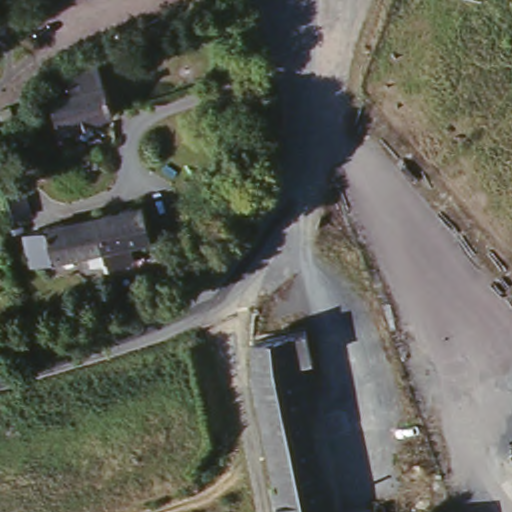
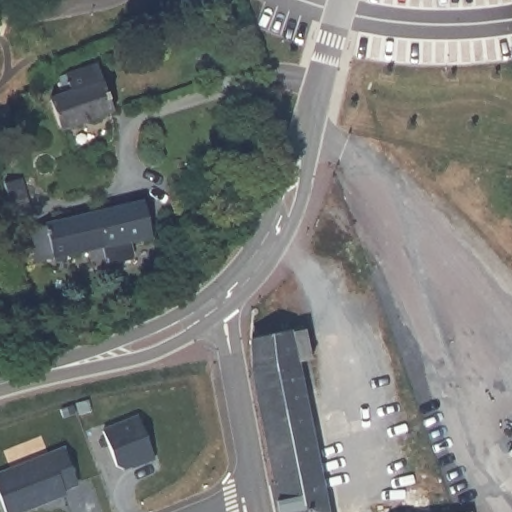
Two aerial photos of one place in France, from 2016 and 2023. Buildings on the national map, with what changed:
unchanged [(67,92),(60,67),(96,56),(118,112),(51,135),(43,101),(67,92)]
unchanged [(52,262),(30,271),(17,237),(41,227),(39,225),(136,199),(149,234),(117,244),(119,256),(106,261),(55,276),(52,262)]
unchanged [(308,356),(292,359),(324,512),(273,512),(267,482),(271,482),(247,367),(246,338),(301,327),(308,356)]
new [(137,420),(153,462),(137,468),(136,465),(121,472),(116,468),(102,433),(137,420)]
unchanged [(512,458),(505,449),(512,444),(512,458)]
new [(76,487),(62,492),(65,497),(26,512),(3,512),(0,504),(0,477),(62,452),(76,487)]

